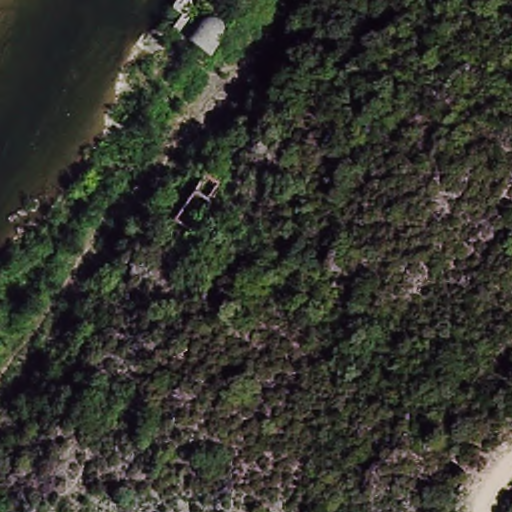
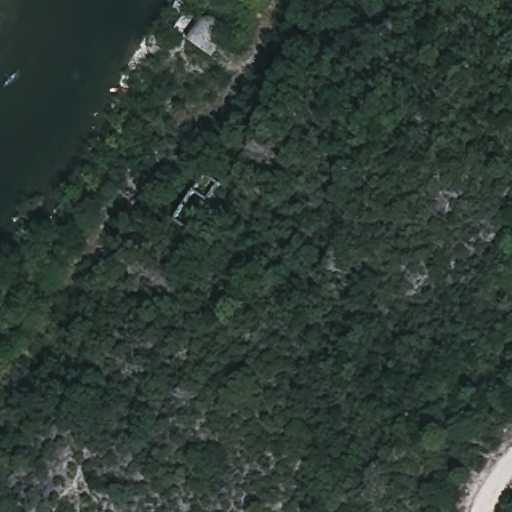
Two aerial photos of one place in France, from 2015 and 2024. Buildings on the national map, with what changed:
unchanged [(186,36),(203,11),(227,30),(210,53),(186,36)]

